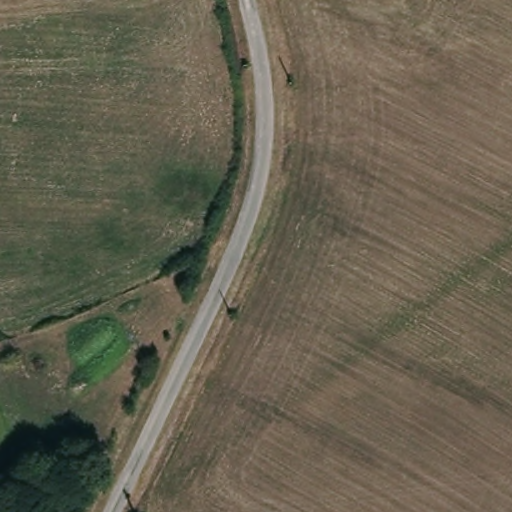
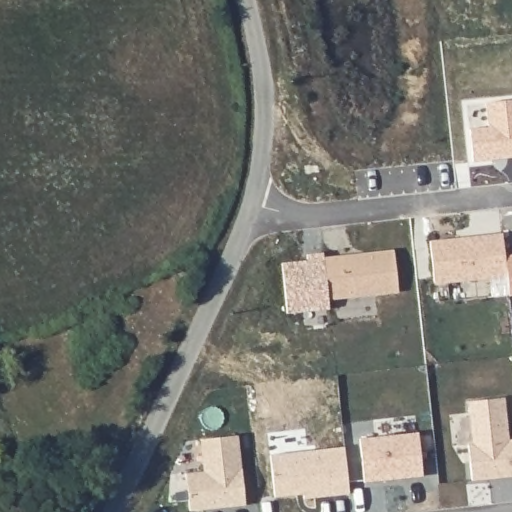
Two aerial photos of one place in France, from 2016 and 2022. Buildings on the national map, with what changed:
demolished [(371,3),(360,4),(359,0),(372,0),(371,3)]
new [(512,98),(512,158),(472,162),(470,128),(488,126),(486,102),(512,98)]
new [(502,233),(507,276),(435,284),(430,241),(502,233)]
new [(393,250),(398,292),(328,300),(324,258),(393,250)]
new [(510,296),(507,276),(505,255),(512,254),(512,296),(510,296)]
new [(500,397),(506,441),(512,441),(512,475),(470,479),(467,444),(473,443),(470,402),(500,397)]
new [(417,431),(422,475),(363,481),(359,438),(417,431)]
new [(239,433),(246,505),(189,511),(186,472),(202,470),(200,439),(239,433)]

